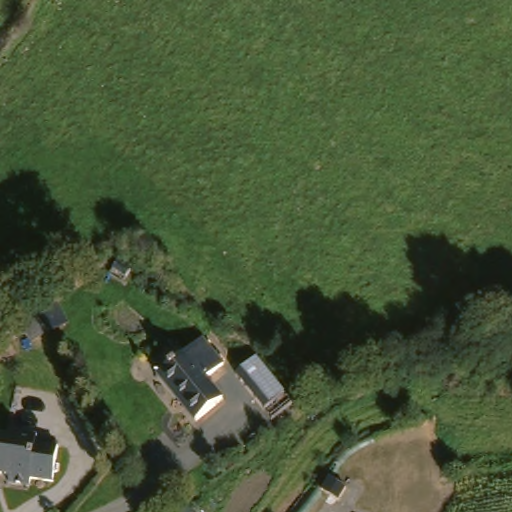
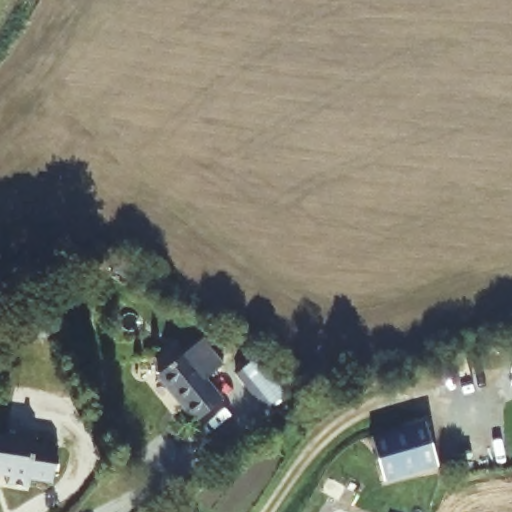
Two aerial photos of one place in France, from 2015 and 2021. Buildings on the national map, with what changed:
unchanged [(198,342),(219,367),(201,383),(216,402),(190,424),(153,378),(198,342)]
unchanged [(254,358),(282,395),(262,412),(233,373),(254,358)]
new [(439,466),(383,481),(370,435),(424,420),(439,466)]
unchanged [(12,439),(41,440),(41,445),(63,446),(61,483),(36,481),(36,488),(17,486),(17,479),(0,478),(0,442),(11,442),(12,439)]
unchanged [(182,506),(186,512),(172,512),(182,506)]

